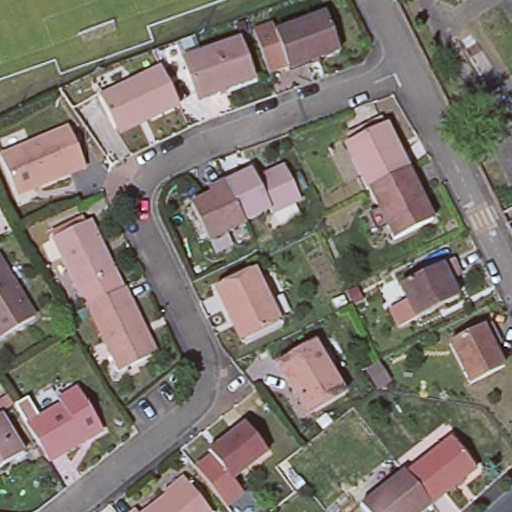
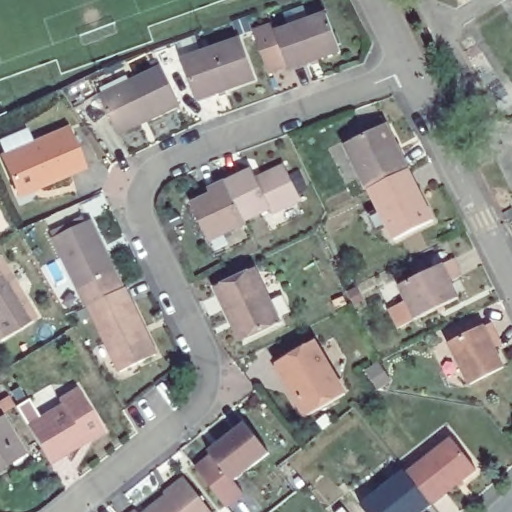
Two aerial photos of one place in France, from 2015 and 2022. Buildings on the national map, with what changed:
unchanged [(356,46),(324,58),(323,54),(284,69),(273,39),(269,26),(287,20),(290,28),(342,9),(356,46)]
unchanged [(255,80),(216,94),(215,90),(196,97),(183,60),(240,40),(255,80)]
unchanged [(116,129),(100,97),(161,67),(180,105),(146,121),(119,135),(116,129)]
unchanged [(374,188),(372,188),(350,143),(359,139),(356,132),(369,126),(372,132),(386,125),(408,170),(374,188)]
unchanged [(86,167),(18,196),(1,156),(69,127),(86,167)]
unchanged [(252,170),(257,179),(285,166),(301,200),(272,214),(270,209),(245,222),(226,183),(252,170)]
unchanged [(427,224),(398,238),(374,188),(408,170),(417,190),(433,221),(427,224)]
unchanged [(245,222),(246,224),(209,242),(191,205),(211,196),(209,191),(226,183),(245,222)]
unchanged [(0,226),(0,206),(8,222),(0,226)]
unchanged [(123,289),(89,306),(87,307),(54,238),(57,236),(55,231),(82,218),(85,223),(90,221),(123,289)]
unchanged [(396,306),(413,297),(405,281),(457,255),(466,271),(455,277),(462,294),(422,314),(404,323),(396,306)]
unchanged [(0,338),(0,258),(36,317),(0,338)]
unchanged [(280,324),(245,340),(232,313),(229,315),(216,288),(254,269),(280,324)]
unchanged [(156,355),(121,372),(89,306),(123,289),(125,288),(156,355)]
unchanged [(490,324),(497,338),(496,338),(500,345),(494,348),(504,368),(470,385),(450,345),(490,324)]
unchanged [(345,394),(308,416),(277,364),(314,342),(345,394)]
unchanged [(50,463),(49,463),(27,425),(62,405),(59,400),(77,388),(103,430),(102,431),(85,441),(50,463)]
unchanged [(0,468),(0,415),(24,454),(0,468)]
unchanged [(237,476),(214,447),(250,419),(273,448),(237,476)]
unchanged [(452,439),(476,470),(431,505),(407,474),(452,439)]
unchanged [(367,512),(362,506),(405,471),(407,474),(431,505),(422,512),(367,512)]
unchanged [(212,512),(145,512),(186,480),(212,512)]
unchanged [(137,512),(134,512),(136,511),(137,512)]

